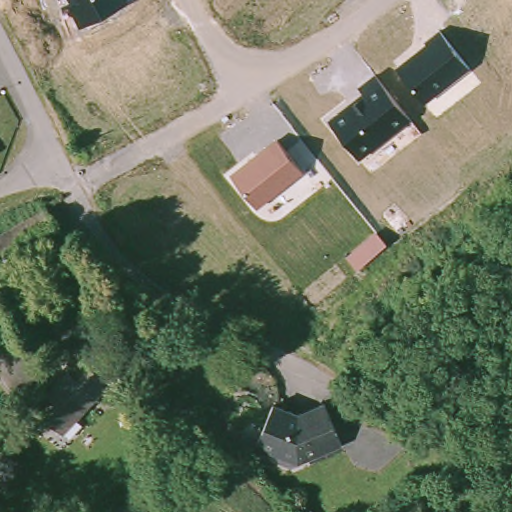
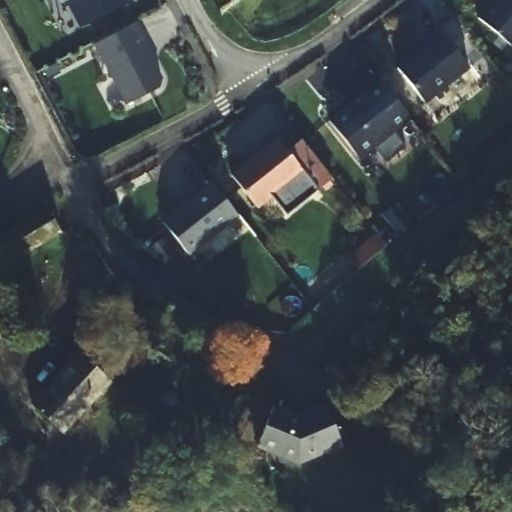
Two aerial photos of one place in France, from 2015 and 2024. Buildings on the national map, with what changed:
unchanged [(125,5),(82,26),(70,0),(123,0),(125,5)]
new [(492,0),(512,0),(512,42),(479,17),(492,0)]
new [(136,23),(144,39),(141,40),(162,81),(159,88),(127,105),(95,45),(136,23)]
unchanged [(470,67),(425,103),(397,66),(427,43),(424,40),(440,28),(470,67)]
unchanged [(413,119),(359,160),(328,118),(362,91),(358,85),(375,72),(413,119)]
unchanged [(306,171),(258,209),(229,174),(276,136),(306,171)]
new [(240,216),(190,256),(162,222),(213,182),(240,216)]
unchanged [(35,208),(48,230),(0,260),(0,230),(35,208)]
new [(377,232),(387,244),(363,265),(358,269),(348,258),(354,253),(377,232)]
unchanged [(12,328),(0,335),(0,305),(12,328)]
unchanged [(58,435),(28,405),(29,404),(79,357),(109,385),(58,435)]
unchanged [(293,426),(324,417),(339,458),(287,474),(273,469),(271,461),(251,452),(267,415),(293,426)]

